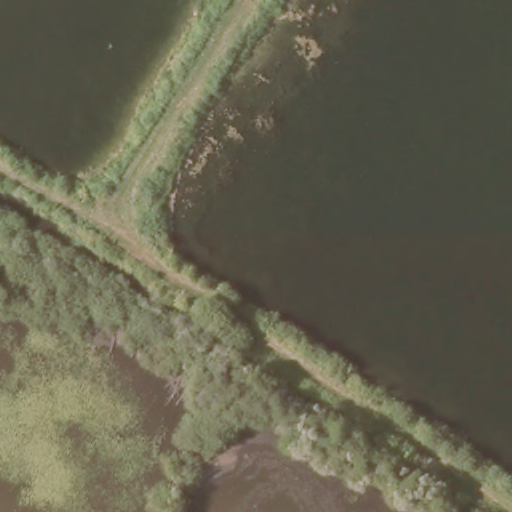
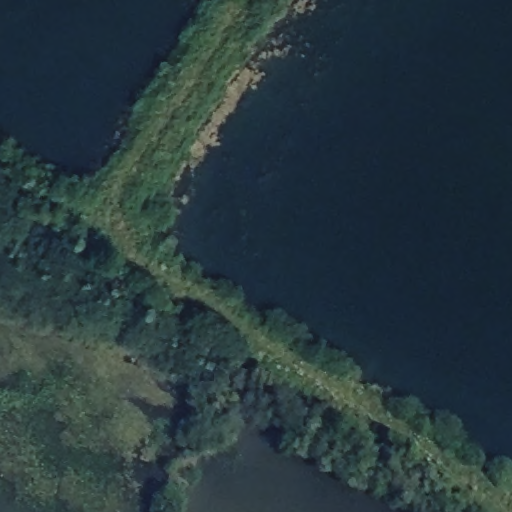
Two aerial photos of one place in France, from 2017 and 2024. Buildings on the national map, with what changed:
[]

